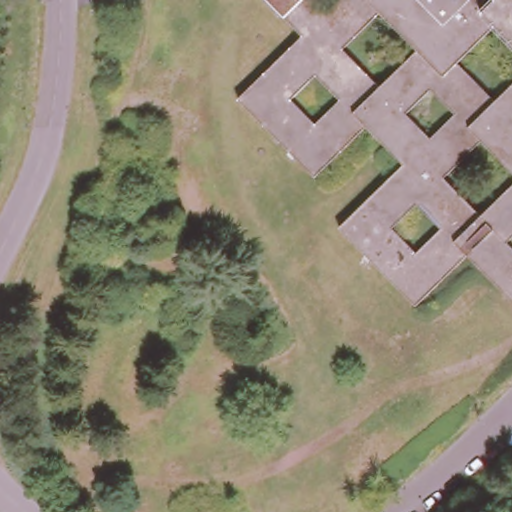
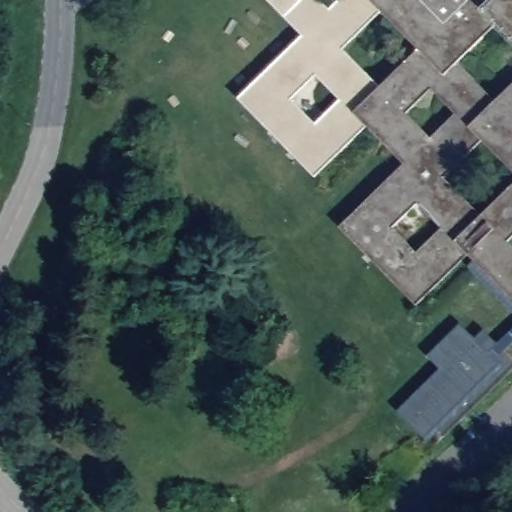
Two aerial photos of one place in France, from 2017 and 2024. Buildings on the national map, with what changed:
unchanged [(467,250),(415,301),(337,221),(401,160),(365,122),(312,172),(237,94),(302,31),(271,0),(322,0),(327,5),(331,0),(512,0),(512,40),(495,22),(457,58),(494,96),(512,78),(512,168),(480,136),(443,173),(480,210),(512,178),(512,231),(506,237),(512,243),(512,296),(467,250)]
new [(427,434),(402,410),(445,366),(431,352),(458,325),(473,340),(480,333),(494,347),(512,329),(512,346),(502,358),(507,363),(446,425),(432,428),(427,434)]

